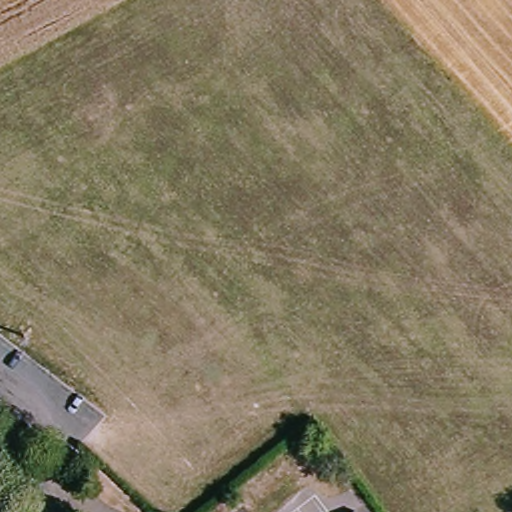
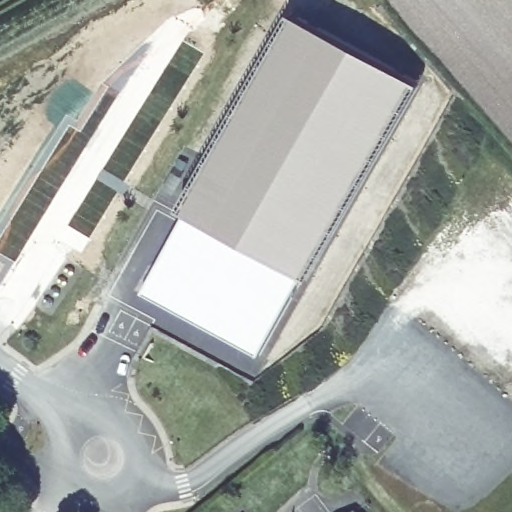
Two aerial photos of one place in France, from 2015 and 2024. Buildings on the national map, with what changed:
new [(301,277),(187,214),(298,16),(414,82),(301,277)]
unchanged [(255,357),(144,292),(187,214),(301,277),(255,357)]

